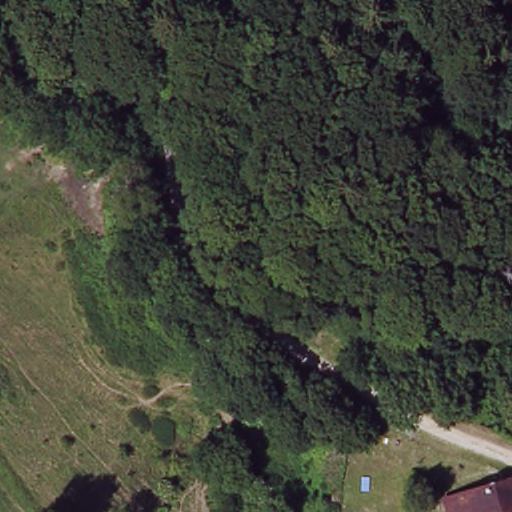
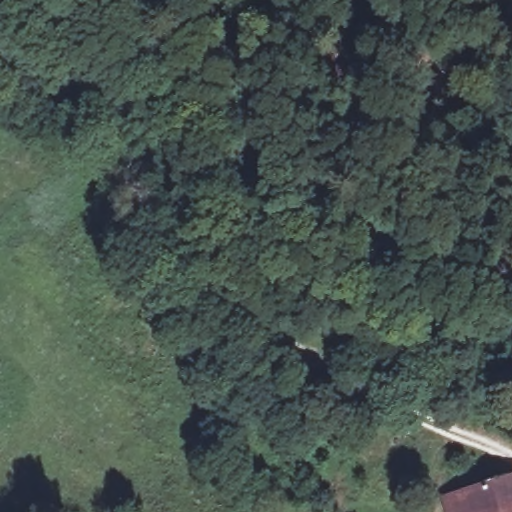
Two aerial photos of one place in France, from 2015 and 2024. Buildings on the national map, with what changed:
unchanged [(448,494),(512,485),(512,512),(451,512),(448,494)]

